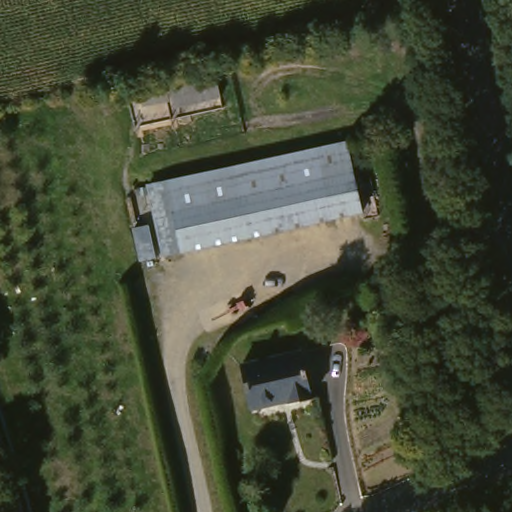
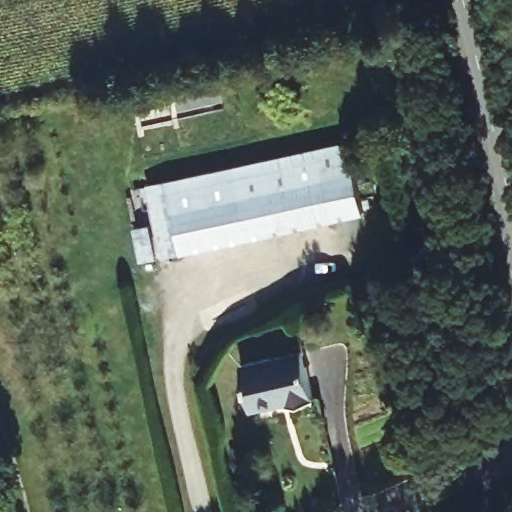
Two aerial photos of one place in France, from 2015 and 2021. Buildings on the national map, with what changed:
unchanged [(154,221),(146,184),(348,142),(363,214),(140,261),(132,227),(154,221)]
unchanged [(291,407),(290,401),(256,408),(245,365),(302,353),(312,402),(291,407)]

